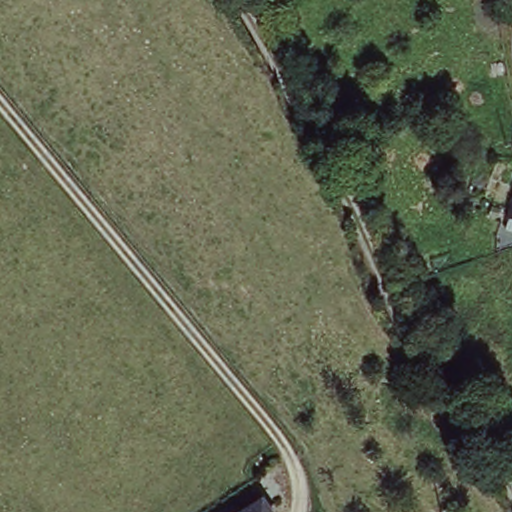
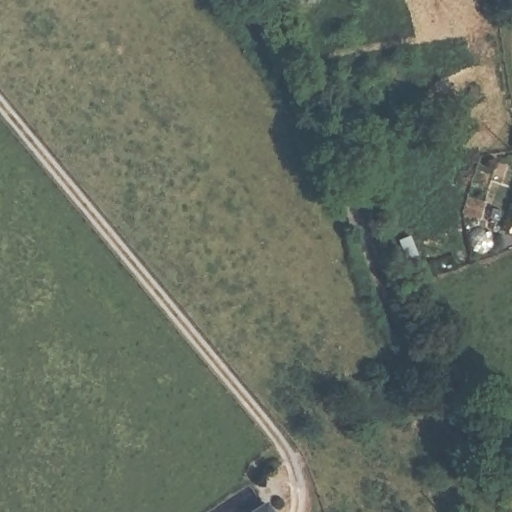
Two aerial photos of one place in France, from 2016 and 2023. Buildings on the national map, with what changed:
unchanged [(503,207),(512,183),(512,210),(503,207)]
unchanged [(262,512),(232,512),(251,499),(262,512)]

